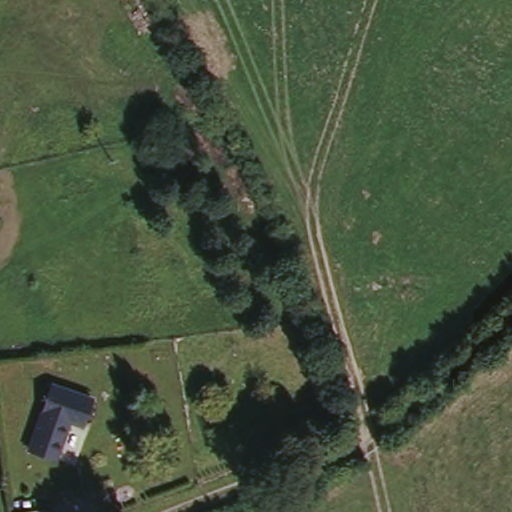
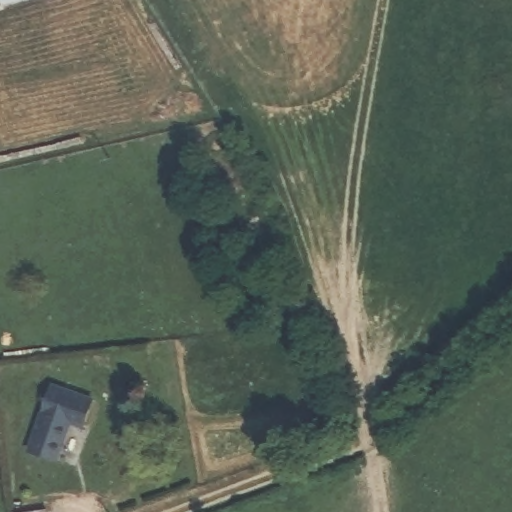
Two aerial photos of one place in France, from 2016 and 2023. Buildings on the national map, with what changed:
unchanged [(83,422),(68,418),(56,458),(34,450),(51,388),(89,398),(83,422)]
unchanged [(47,512),(35,512),(46,510),(47,512)]

